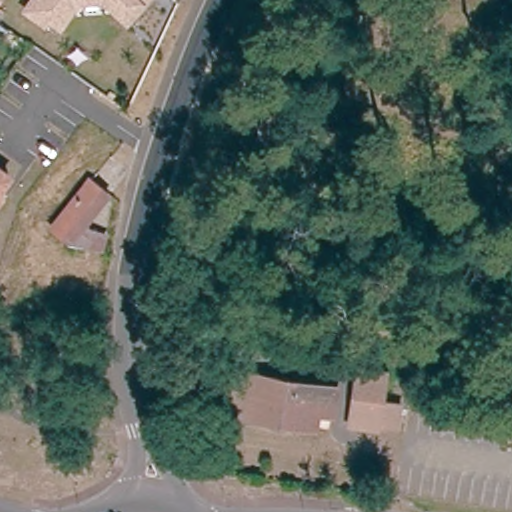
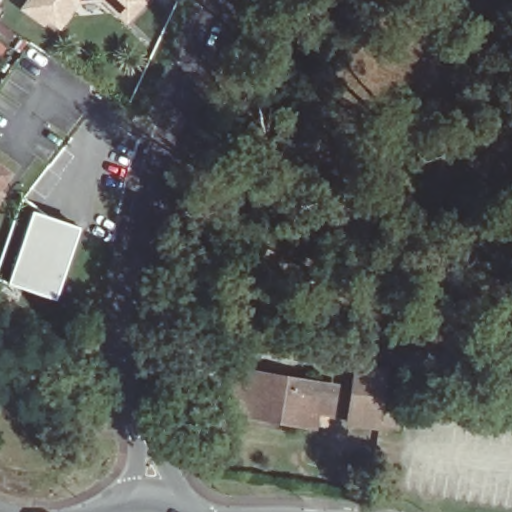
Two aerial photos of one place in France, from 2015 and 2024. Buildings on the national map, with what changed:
unchanged [(96,2),(71,4),(52,29),(40,19),(36,24),(18,9),(26,0),(139,0),(135,5),(121,22),(115,17),(96,2)]
unchanged [(12,174),(1,190),(5,194),(0,201),(0,165),(12,174)]
demolished [(82,181),(100,195),(76,230),(53,220),(82,181)]
new [(55,299),(8,285),(0,282),(0,266),(22,198),(36,205),(33,213),(78,229),(55,299)]
unchanged [(400,433),(381,429),(355,426),(363,367),(391,369),(385,404),(404,409),(400,433)]
unchanged [(257,417),(233,414),(239,371),(324,382),(320,408),(303,406),(302,412),(300,422),(257,417)]

